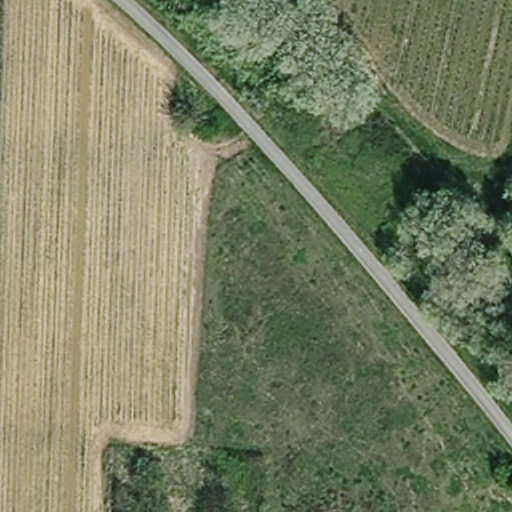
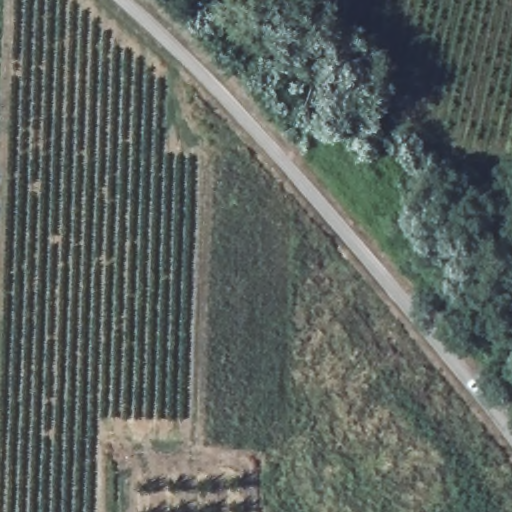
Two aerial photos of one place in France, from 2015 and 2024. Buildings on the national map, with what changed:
unchanged [(493,466),(512,468),(512,492),(492,490),(493,466)]

